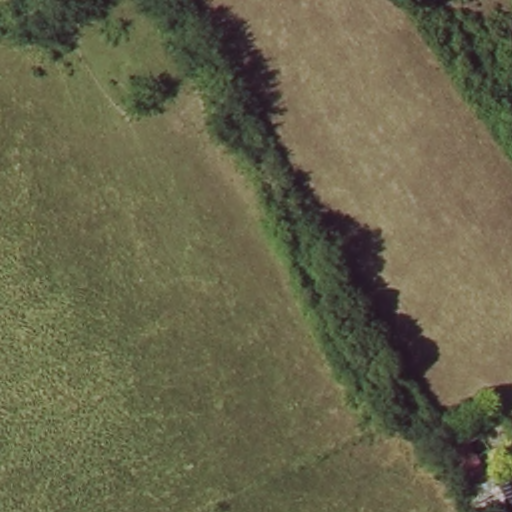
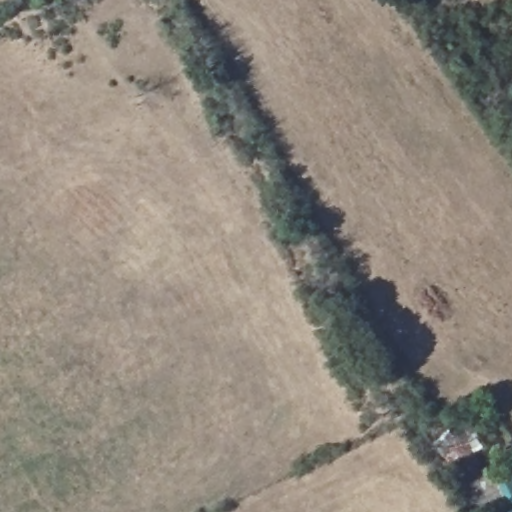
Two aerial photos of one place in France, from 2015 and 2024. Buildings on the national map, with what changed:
[]

